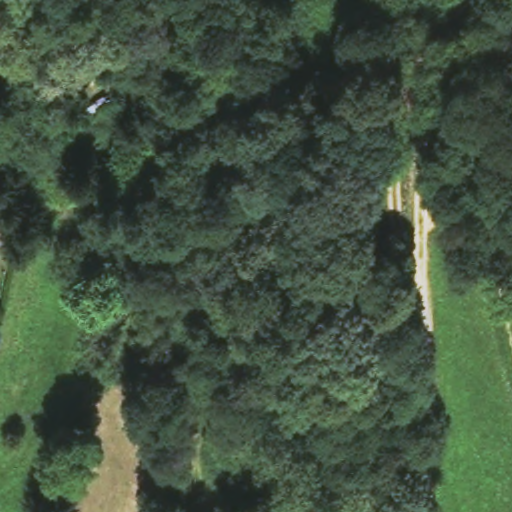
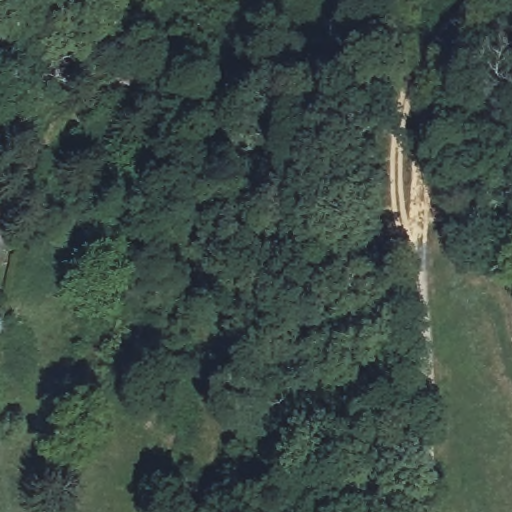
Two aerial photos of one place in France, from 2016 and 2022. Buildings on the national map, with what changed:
unchanged [(106,77),(119,49),(162,70),(149,100),(106,77)]

